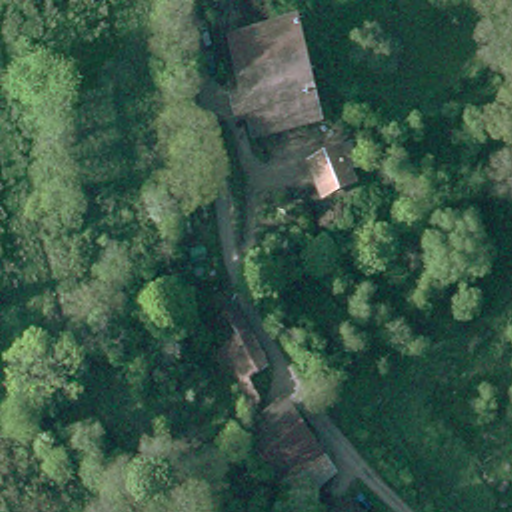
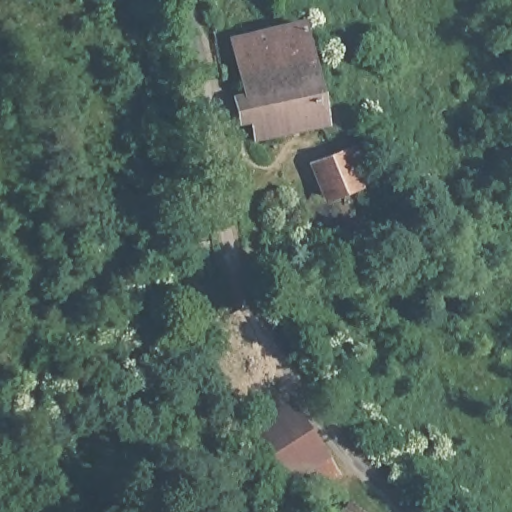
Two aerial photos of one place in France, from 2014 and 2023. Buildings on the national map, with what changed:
unchanged [(300,44),(233,56),(230,37),(297,26),(300,44)]
unchanged [(300,44),(313,130),(247,139),(233,56),(300,44)]
unchanged [(337,150),(347,185),(321,191),(310,159),(337,150)]
unchanged [(270,385),(250,398),(230,365),(225,367),(214,345),(239,330),(270,385)]
unchanged [(247,440),(290,410),(313,445),(270,473),(247,440)]
unchanged [(330,469),(287,498),(270,473),(313,445),(330,469)]
unchanged [(358,512),(338,512),(347,502),(358,512)]

